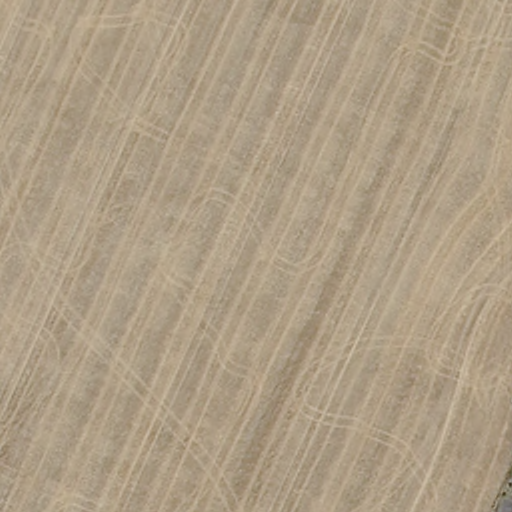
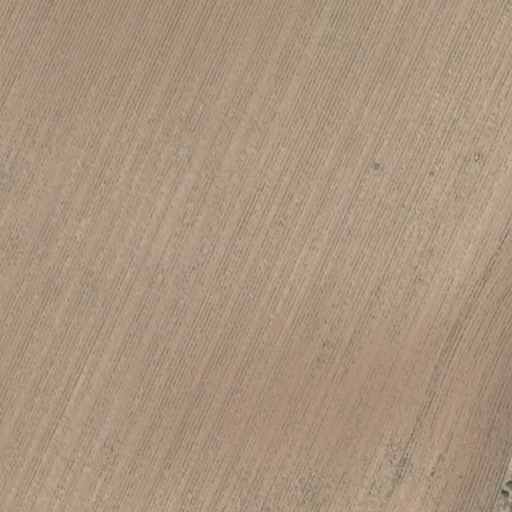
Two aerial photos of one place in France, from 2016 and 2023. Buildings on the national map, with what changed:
[]

